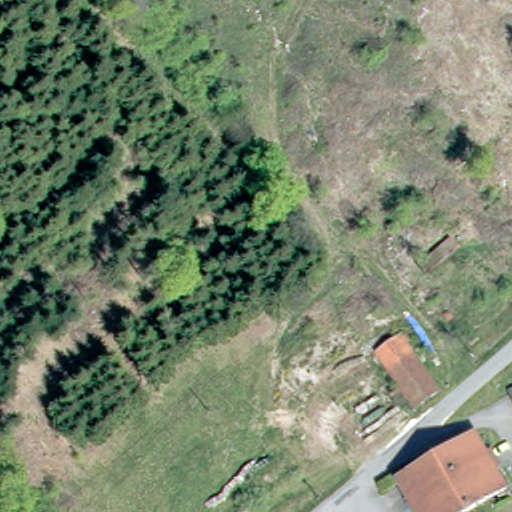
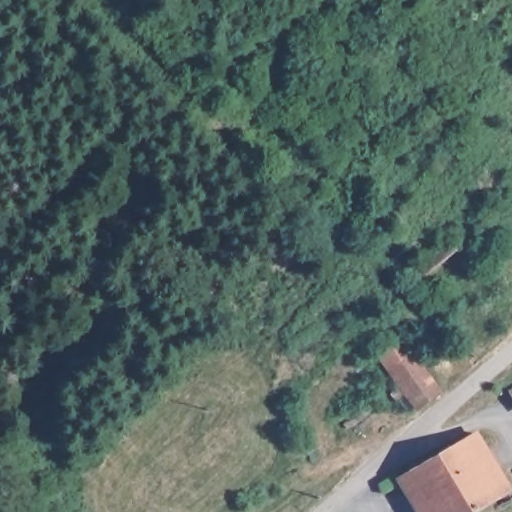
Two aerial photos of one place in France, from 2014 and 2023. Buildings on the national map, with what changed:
unchanged [(387,361),(406,348),(432,387),(413,401),(387,361)]
unchanged [(511,401),(512,400),(512,403),(511,401)]
unchanged [(463,512),(414,512),(394,482),(467,432),(502,485),(463,512)]

